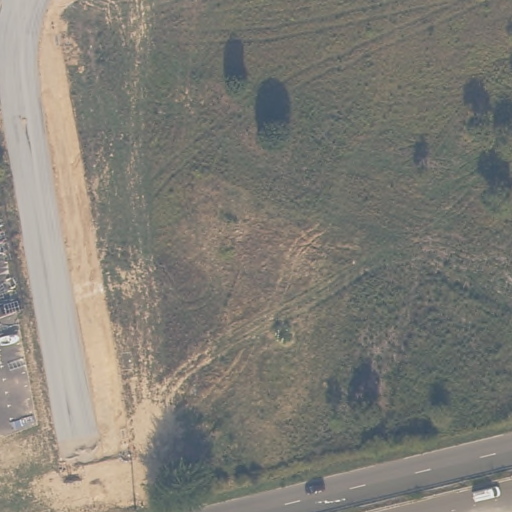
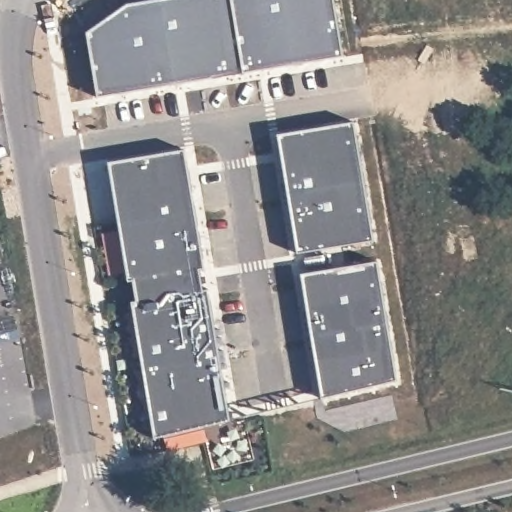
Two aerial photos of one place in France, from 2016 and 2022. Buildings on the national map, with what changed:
new [(245,72),(100,97),(88,33),(127,5),(155,0),(335,0),(343,55),(245,72)]
new [(278,135),(355,121),(377,243),(299,253),(278,135)]
new [(155,439),(131,303),(136,302),(133,282),(128,283),(107,162),(187,149),(205,270),(201,272),(205,290),(210,289),(231,422),(155,439)]
new [(400,380),(323,397),(301,274),(379,262),(400,380)]
demolished [(162,422),(140,476),(121,469),(119,476),(105,471),(121,431),(116,429),(120,421),(130,425),(128,432),(135,434),(142,414),(162,422)]

